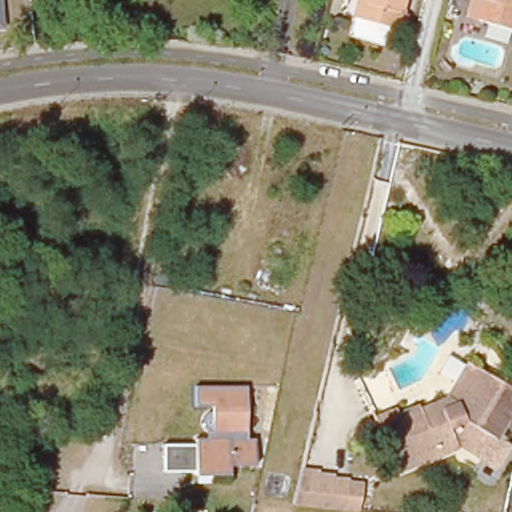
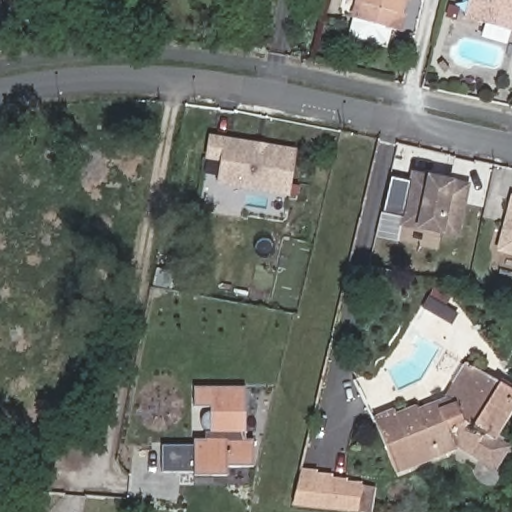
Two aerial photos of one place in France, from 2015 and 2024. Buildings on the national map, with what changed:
unchanged [(5,32),(0,33),(0,0),(2,0),(5,32)]
unchanged [(393,32),(385,29),(379,46),(343,35),(349,17),(354,0),(403,0),(393,32)]
unchanged [(482,0),(512,0),(512,27),(478,19),(482,0)]
new [(217,184),(221,162),(207,160),(211,135),(297,150),(291,197),(217,184)]
new [(401,226),(412,172),(472,185),(460,239),(401,226)]
new [(512,196),(512,256),(497,252),(512,196)]
unchanged [(368,416),(388,409),(390,412),(410,405),(412,410),(437,399),(460,363),(512,395),(512,404),(490,441),(478,435),(464,456),(453,448),(392,473),(368,416)]
unchanged [(157,442),(189,442),(189,436),(206,437),(207,405),(190,404),(190,383),(221,384),(242,384),(241,437),(249,437),(249,465),(222,464),(222,473),(202,473),(189,473),(189,470),(157,469),(157,442)]
unchanged [(367,512),(289,502),(298,468),(372,485),(367,512)]

